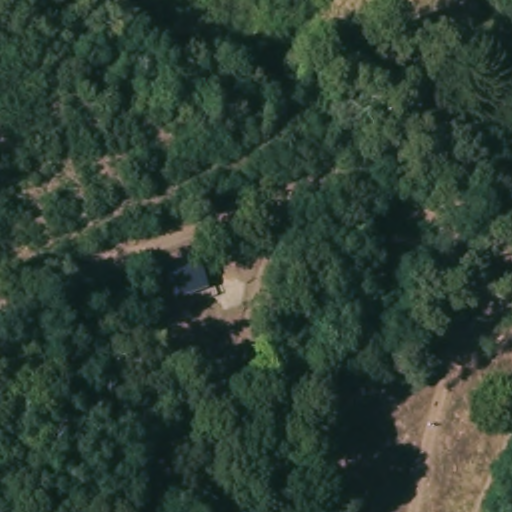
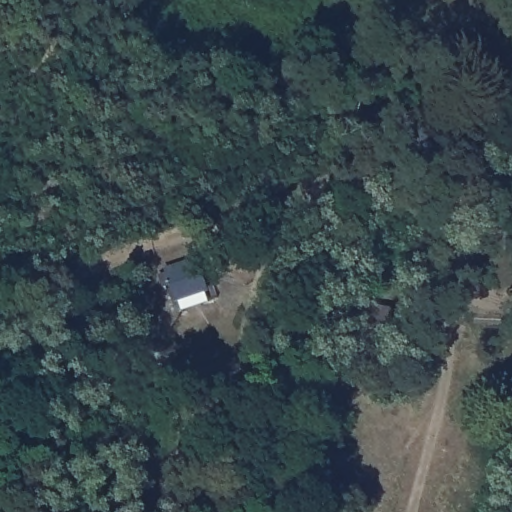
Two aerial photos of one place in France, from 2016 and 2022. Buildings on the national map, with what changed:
unchanged [(399,197),(401,220),(375,222),(372,201),(399,197)]
unchanged [(375,256),(374,264),(405,265),(405,282),(363,281),(365,255),(375,256)]
unchanged [(161,276),(159,271),(189,259),(200,290),(169,301),(164,286),(158,288),(154,278),(161,276)]
unchanged [(387,311),(384,343),(360,342),(363,308),(387,311)]
unchanged [(379,382),(373,406),(346,398),(352,375),(379,382)]
unchanged [(331,472),(335,458),(349,408),(373,414),(359,465),(355,480),(331,472)]

